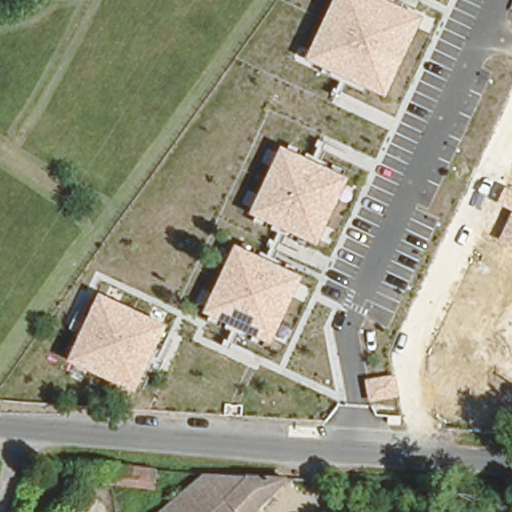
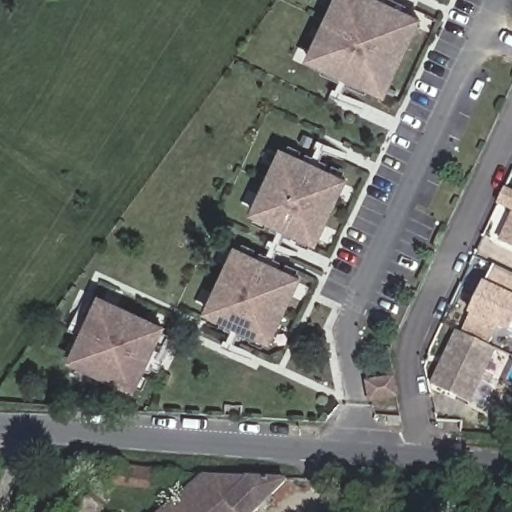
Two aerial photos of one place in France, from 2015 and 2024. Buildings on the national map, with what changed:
unchanged [(385,99),(307,62),(336,0),(384,0),(422,18),(385,99)]
unchanged [(317,247),(252,215),(284,147),(348,178),(317,247)]
unchanged [(506,186),(512,189),(512,211),(497,203),(506,186)]
unchanged [(512,211),(512,247),(498,241),(512,211)]
unchanged [(271,346),(205,316),(239,247),(302,278),(271,346)]
new [(492,262),(512,271),(512,326),(509,332),(470,313),(484,281),(492,262)]
unchanged [(134,393),(67,362),(101,294),(167,325),(134,393)]
new [(470,403),(431,384),(455,329),(496,348),(470,403)]
new [(393,375),(397,395),(372,401),(367,381),(393,375)]
unchanged [(159,486),(114,486),(114,470),(159,472),(159,486)]
unchanged [(287,481),(252,512),(165,512),(206,475),(287,481)]

